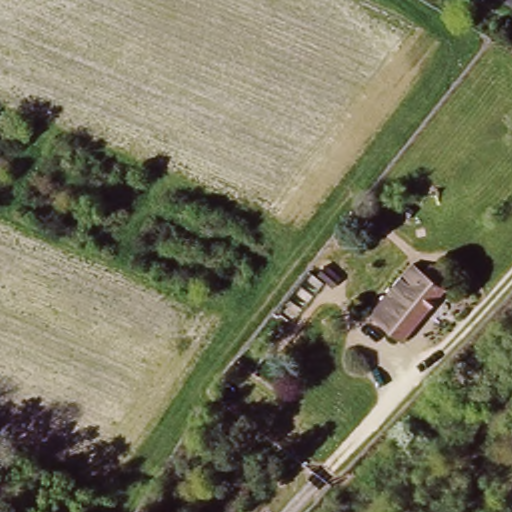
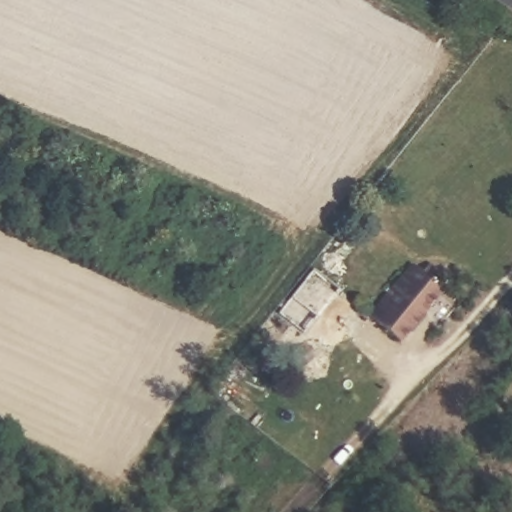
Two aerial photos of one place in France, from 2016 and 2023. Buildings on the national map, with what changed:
unchanged [(404,280),(412,286),(422,276),(446,292),(402,344),(369,319),(404,280)]

